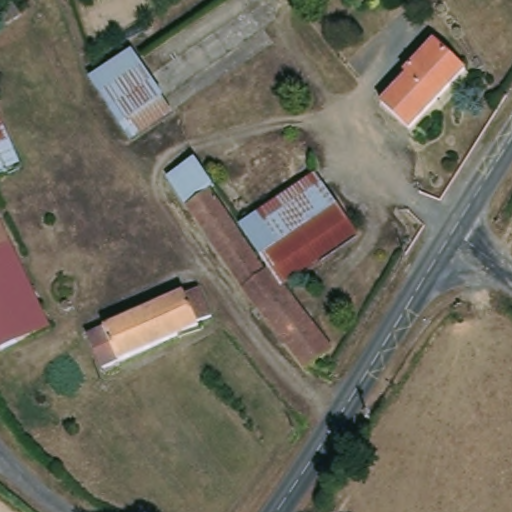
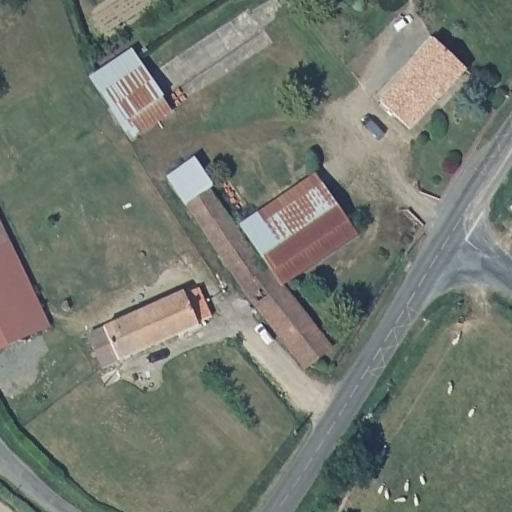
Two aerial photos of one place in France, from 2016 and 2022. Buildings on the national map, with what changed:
unchanged [(390,101),(414,81),(410,74),(443,42),(472,73),(415,127),(390,101)]
unchanged [(100,83),(118,71),(131,63),(139,57),(173,109),(157,120),(135,136),(127,124),(100,83)]
unchanged [(317,173),(358,234),(285,285),(335,348),(306,370),(242,289),(186,207),(167,176),(196,159),(212,188),(238,224),(317,173)]
unchanged [(0,348),(0,217),(49,326),(0,348)]
unchanged [(100,340),(186,297),(187,301),(205,292),(214,314),(199,322),(106,365),(100,340)]

